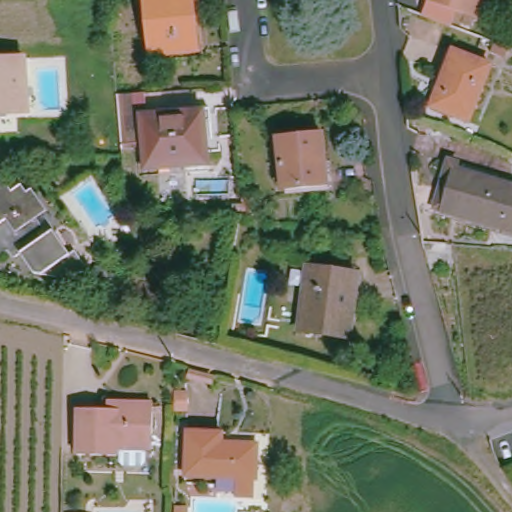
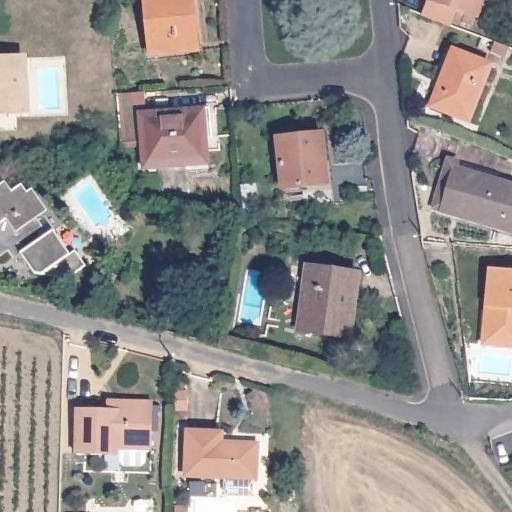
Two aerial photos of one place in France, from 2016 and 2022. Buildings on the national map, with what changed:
unchanged [(192,23),(187,23),(189,52),(148,55),(143,0),(190,0),(192,23)]
unchanged [(470,17),(423,0),(475,0),(470,17)]
unchanged [(427,106),(449,50),(486,65),(464,121),(427,106)]
unchanged [(24,60),(29,106),(0,108),(0,62),(24,60)]
unchanged [(119,147),(114,98),(137,96),(140,113),(136,113),(140,145),(119,147)]
unchanged [(206,108),(208,121),(201,122),(204,164),(142,169),(140,145),(136,113),(140,113),(206,108)]
unchanged [(280,136),(321,132),(327,183),(285,186),(280,136)]
unchanged [(444,165),(452,168),(452,175),(509,193),(505,209),(512,211),(512,239),(428,214),(444,165)]
unchanged [(68,249),(78,267),(60,277),(31,274),(19,254),(13,257),(8,250),(0,255),(0,193),(16,182),(62,253),(68,249)]
unchanged [(346,302),(350,302),(349,334),(299,333),(300,265),(347,269),(346,302)]
new [(480,347),(487,268),(512,271),(512,351),(480,347)]
unchanged [(148,446),(142,446),(142,460),(138,464),(121,464),(117,460),(117,447),(114,447),(114,455),(73,455),(74,408),(91,408),(91,400),(110,400),(148,399),(148,446)]
unchanged [(228,497),(229,477),(179,476),(178,432),(215,432),(216,441),(250,442),(248,476),(248,498),(228,497)]

